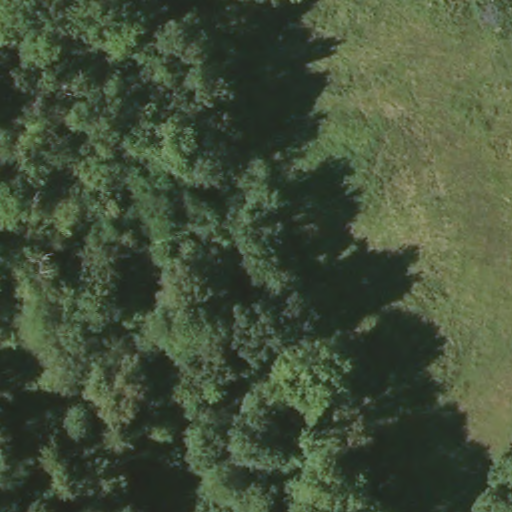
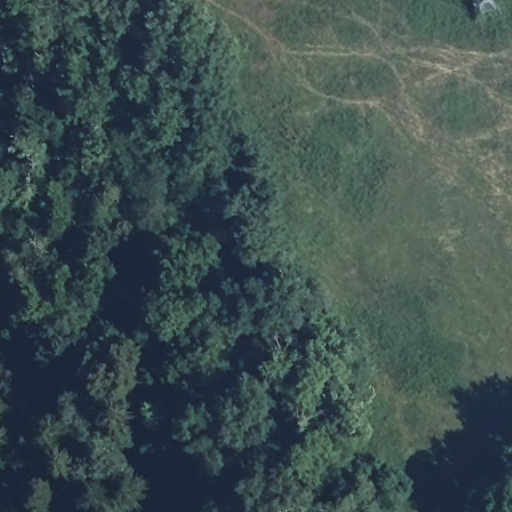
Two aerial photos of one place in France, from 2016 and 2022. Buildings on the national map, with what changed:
[]

